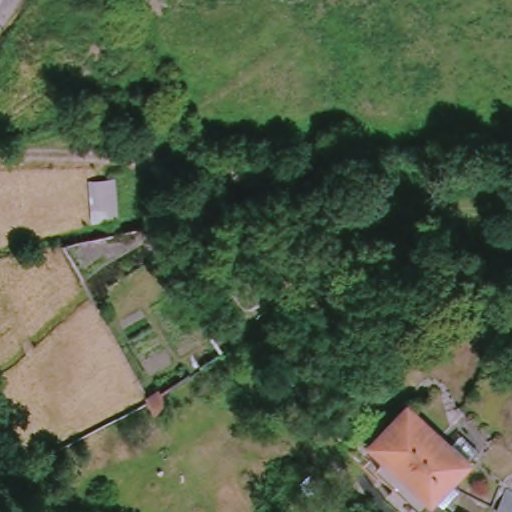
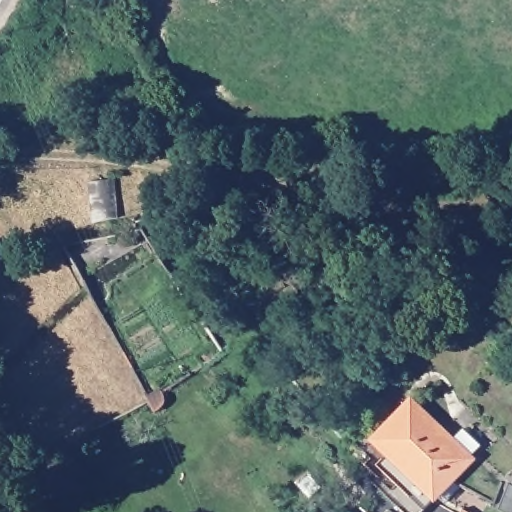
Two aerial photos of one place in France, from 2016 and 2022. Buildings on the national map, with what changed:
unchanged [(96,179),(118,177),(119,216),(96,220),(96,179)]
unchanged [(418,512),(406,512),(383,492),(393,481),(376,462),(385,452),(371,439),(409,397),(450,435),(461,423),(480,440),(470,453),(472,455),(418,512)]
unchanged [(497,487),(512,489),(512,512),(494,512),(497,487)]

